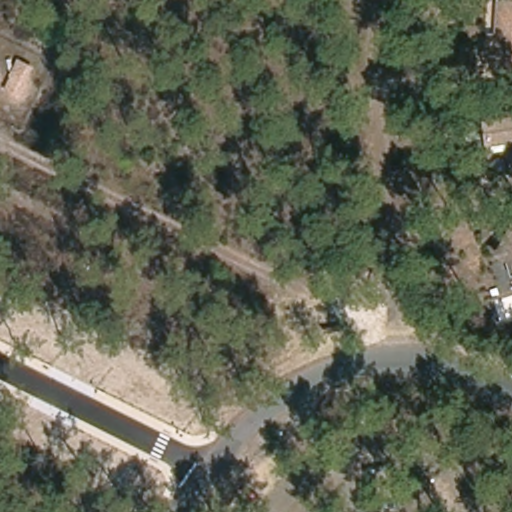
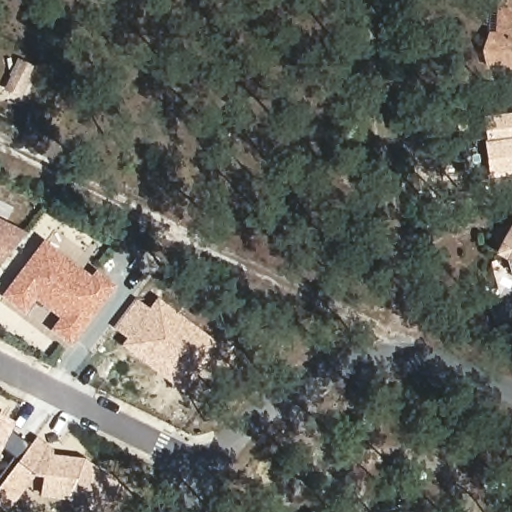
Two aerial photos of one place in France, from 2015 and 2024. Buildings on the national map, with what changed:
unchanged [(490,37),(502,37),(503,0),(512,0),(512,68),(497,68),(485,68),(483,51),(490,37)]
unchanged [(488,118),(512,114),(512,170),(495,173),(488,118)]
new [(2,264),(0,264),(0,218),(28,232),(2,264)]
unchanged [(504,229),(512,230),(512,273),(499,244),(504,229)]
new [(72,345),(50,330),(60,317),(36,299),(25,312),(2,294),(44,239),(92,275),(96,269),(117,285),(72,345)]
new [(125,338),(113,328),(136,298),(150,309),(158,298),(220,345),(183,393),(120,346),(125,338)]
new [(43,477),(36,476),(8,512),(3,512),(0,510),(0,475),(13,457),(2,448),(0,452),(0,415),(15,422),(11,431),(30,444),(36,437),(54,450),(53,453),(46,452),(43,477)]
new [(86,512),(69,498),(41,495),(46,452),(84,456),(123,485),(103,512),(86,512)]

